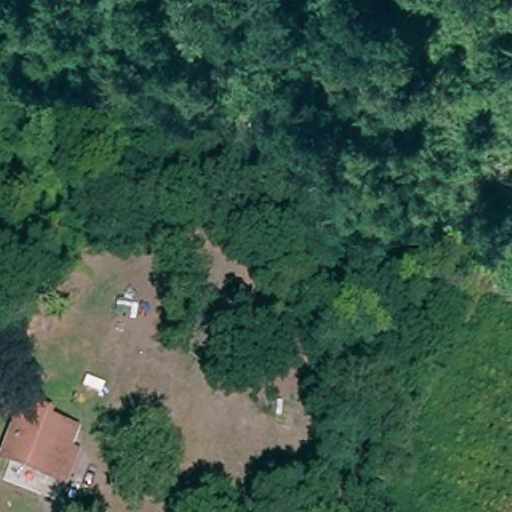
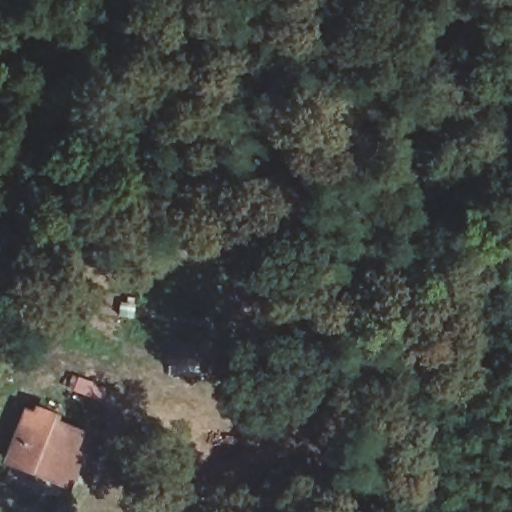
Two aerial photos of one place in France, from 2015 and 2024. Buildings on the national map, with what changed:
unchanged [(53,477),(7,461),(24,412),(30,415),(34,404),(53,411),(50,419),(76,429),(69,448),(76,451),(72,464),(65,481),(53,477)]

